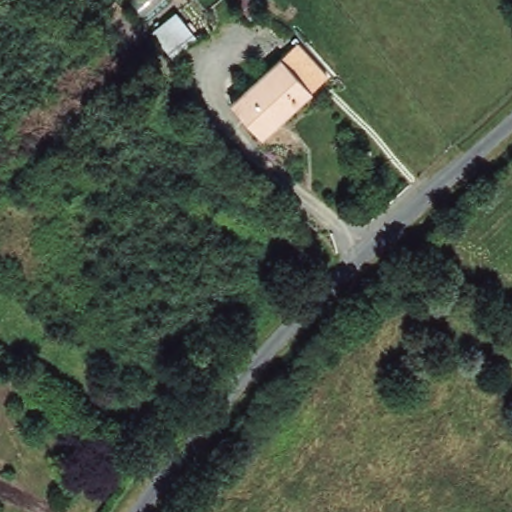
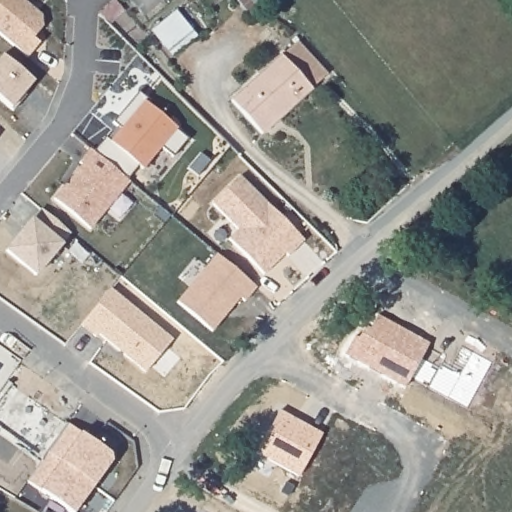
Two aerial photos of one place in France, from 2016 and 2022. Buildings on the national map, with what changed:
new [(39,14),(40,27),(31,37),(37,42),(25,56),(0,36),(0,0),(21,0),(39,14)]
unchanged [(253,14),(239,0),(268,0),(253,14)]
unchanged [(162,21),(181,6),(202,31),(184,47),(162,21)]
new [(0,55),(31,81),(22,93),(24,94),(11,110),(0,101),(0,55)]
unchanged [(272,123),(256,138),(225,104),(275,59),(288,73),(300,62),(315,80),(303,91),(305,93),(272,123)]
new [(103,136),(109,140),(119,128),(111,121),(137,90),(146,98),(144,100),(176,126),(175,128),(187,137),(172,156),(160,146),(141,168),(137,164),(125,179),(91,151),(103,136)]
new [(80,164),(78,161),(88,148),(91,151),(125,179),(128,181),(88,228),(52,198),(80,164)]
new [(228,239),(238,229),(212,204),(239,176),(306,240),(288,257),(286,254),(265,275),(228,239)]
new [(4,250),(32,218),(41,208),(72,232),(62,244),(36,277),(4,250)]
new [(215,254),(254,287),(243,301),(238,297),(210,331),(175,302),(215,254)]
new [(175,339),(148,371),(101,331),(98,335),(83,322),(113,287),(175,339)]
new [(109,454),(110,461),(73,512),(68,512),(25,481),(66,424),(109,454)]

